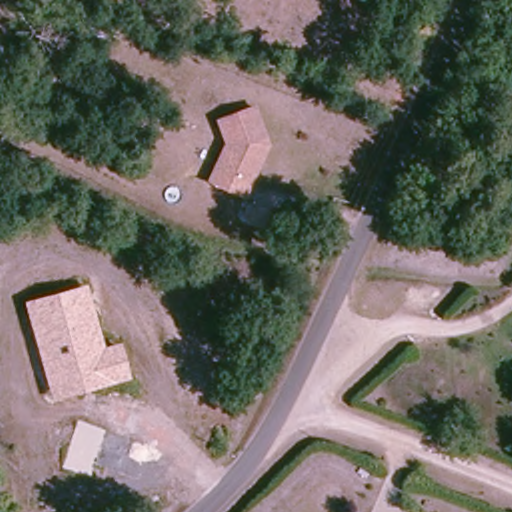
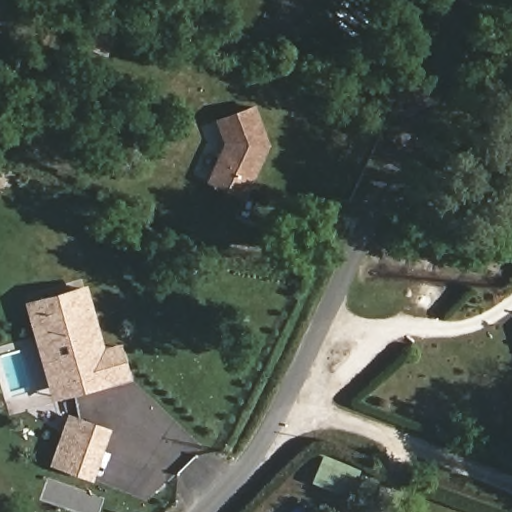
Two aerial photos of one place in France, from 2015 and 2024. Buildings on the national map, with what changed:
unchanged [(267,146),(245,200),(204,182),(220,143),(212,117),(254,104),(267,146)]
unchanged [(52,400),(23,302),(87,286),(104,347),(120,343),(130,379),(52,400)]
new [(111,428),(92,481),(48,465),(67,413),(111,428)]

